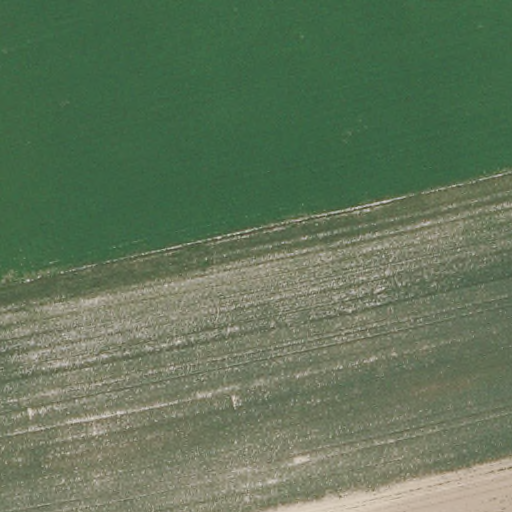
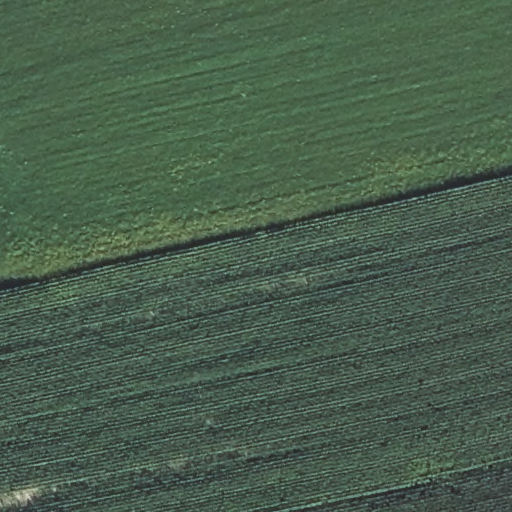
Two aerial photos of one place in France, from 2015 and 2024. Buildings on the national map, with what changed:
[]

